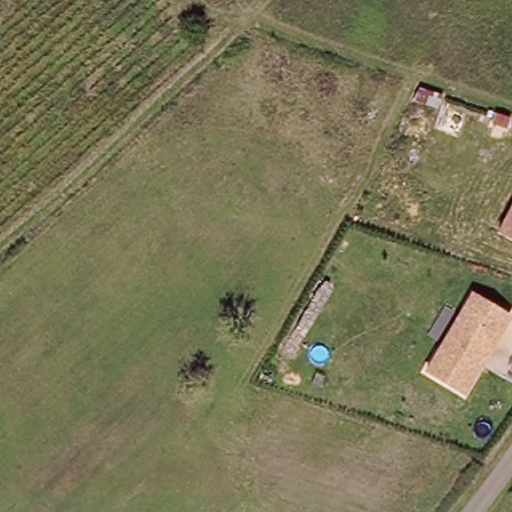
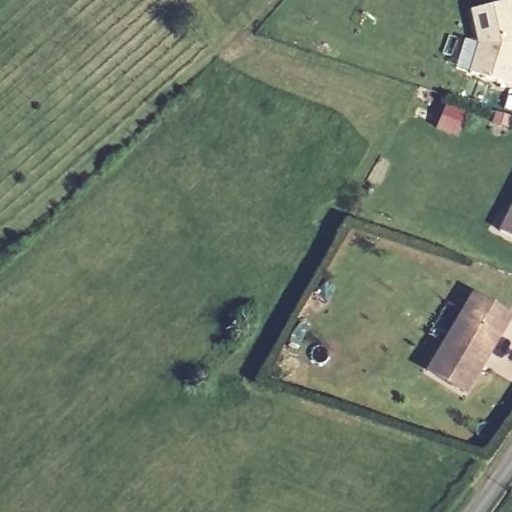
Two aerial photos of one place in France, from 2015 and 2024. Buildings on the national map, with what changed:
new [(512,75),(509,85),(468,72),(476,46),(469,10),(512,0),(512,75)]
unchanged [(512,202),(512,239),(496,231),(512,202)]
unchanged [(512,314),(512,317),(466,393),(427,370),(473,292),(512,314)]

